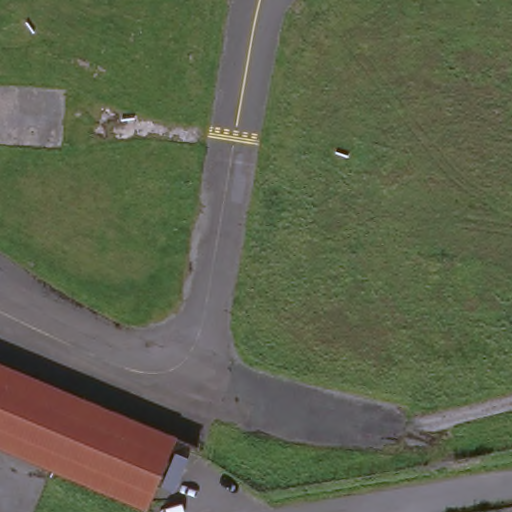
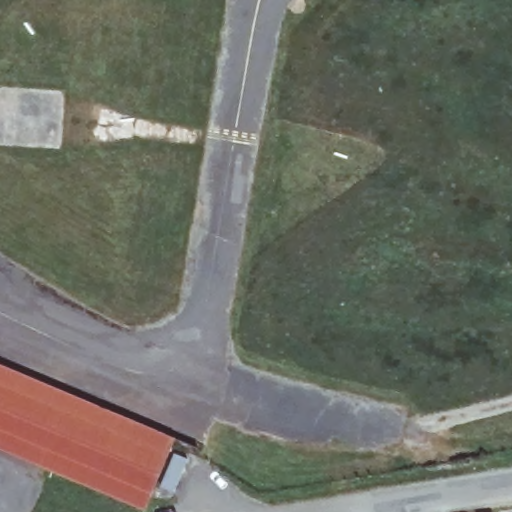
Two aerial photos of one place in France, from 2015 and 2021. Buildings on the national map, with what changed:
unchanged [(141,512),(0,454),(0,368),(173,441),(141,512)]

